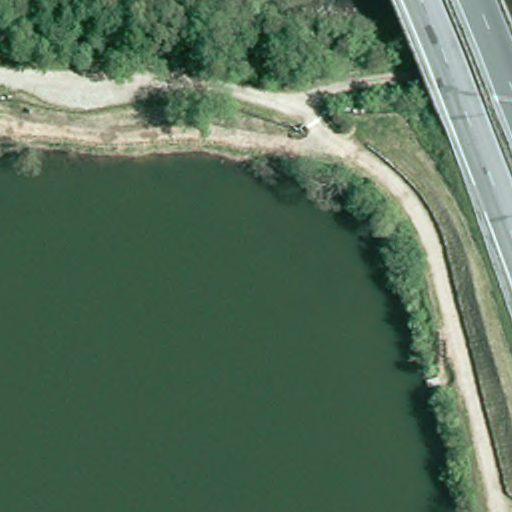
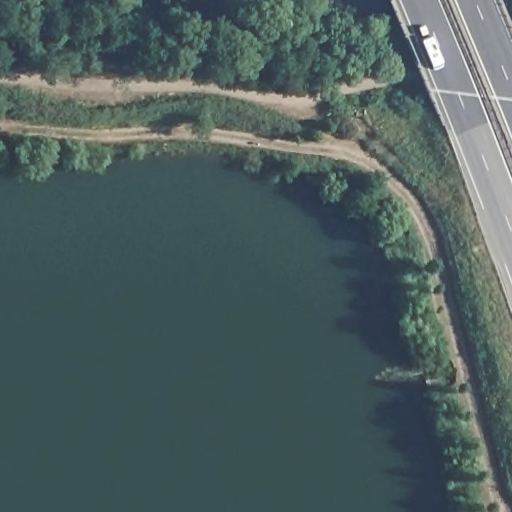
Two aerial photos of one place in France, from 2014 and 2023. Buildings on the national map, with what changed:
[]

